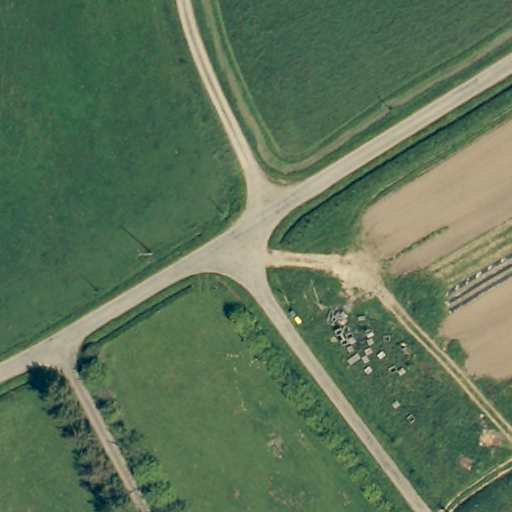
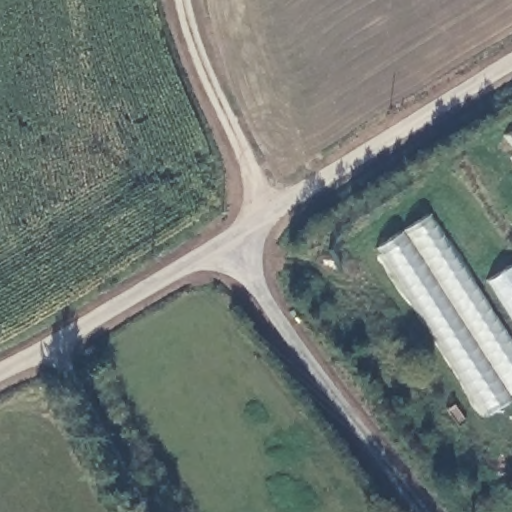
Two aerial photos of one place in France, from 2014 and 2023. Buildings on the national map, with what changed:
new [(510,136),(512,135),(512,140),(510,136)]
new [(430,215),(512,342),(512,400),(487,416),(379,247),(430,215)]

